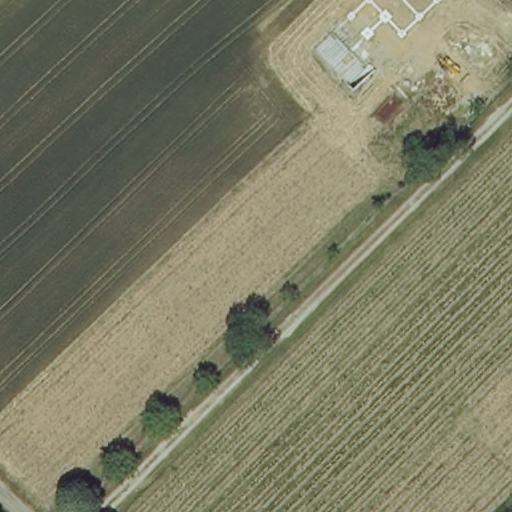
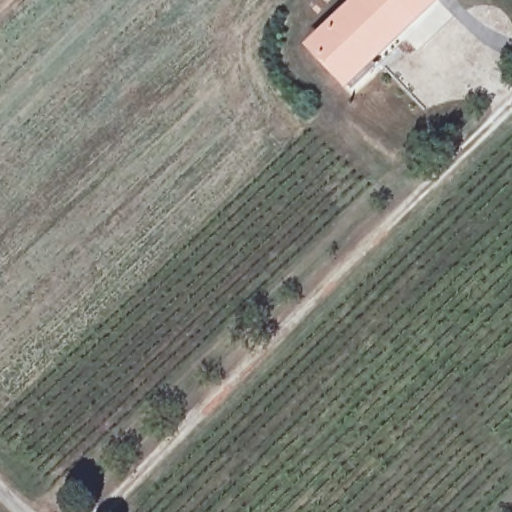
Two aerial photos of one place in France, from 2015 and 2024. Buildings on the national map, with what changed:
new [(348,91),(306,46),(356,0),(444,0),(348,91)]

